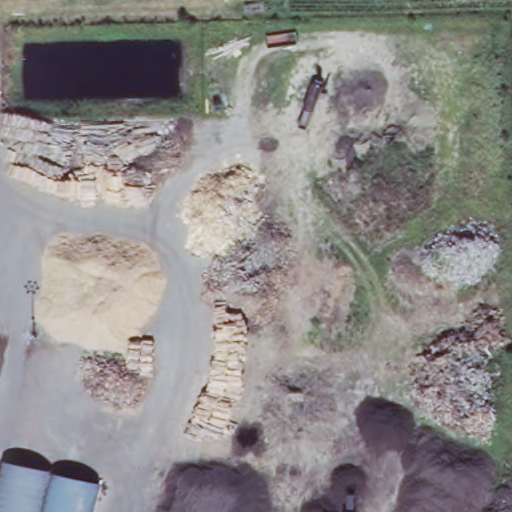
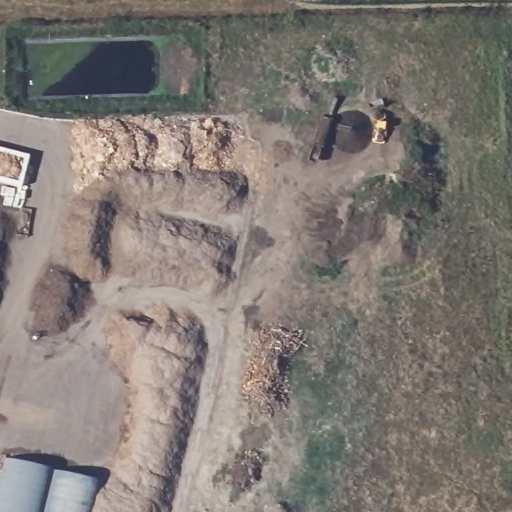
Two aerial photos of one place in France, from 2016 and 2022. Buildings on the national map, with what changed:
unchanged [(100,485),(94,512),(0,512),(0,507),(11,466),(100,485)]

